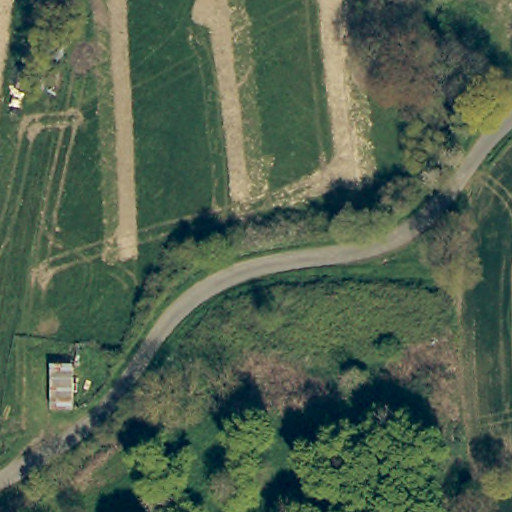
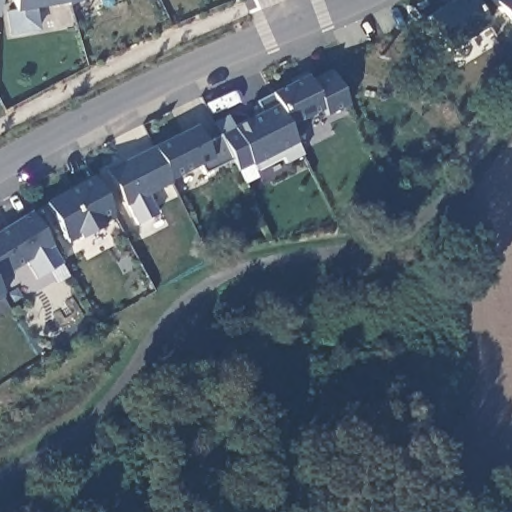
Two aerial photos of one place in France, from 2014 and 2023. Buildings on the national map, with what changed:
new [(68,5),(38,10),(39,32),(9,37),(6,12),(13,11),(12,0),(72,0),(67,2),(68,5)]
new [(446,52),(425,17),(454,0),(469,0),(485,28),(446,52)]
new [(512,0),(512,27),(490,0),(512,0)]
new [(306,75),(310,82),(331,72),(348,107),(325,117),(321,112),(286,130),(269,95),(306,75)]
new [(286,130),(292,127),(298,140),(251,165),(238,172),(231,161),(218,136),(209,123),(225,113),(232,125),(260,111),(255,101),(269,95),(286,130)]
new [(196,126),(204,144),(218,136),(231,161),(204,176),(198,167),(168,182),(151,147),(196,126)]
new [(168,182),(146,195),(157,215),(138,225),(128,207),(123,210),(105,172),(151,147),(168,182)]
new [(92,177),(117,218),(67,245),(43,204),(92,177)]
new [(49,246),(61,267),(37,281),(25,263),(0,280),(0,230),(28,212),(49,246)]
new [(1,294),(3,298),(0,300),(0,292),(1,294)]
demolished [(73,363),(72,408),(51,408),(51,363),(73,363)]

